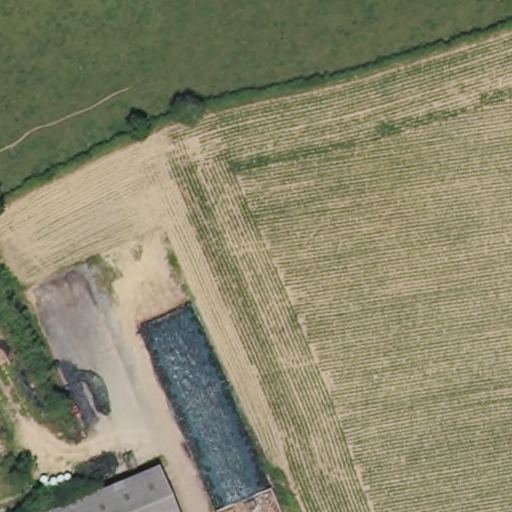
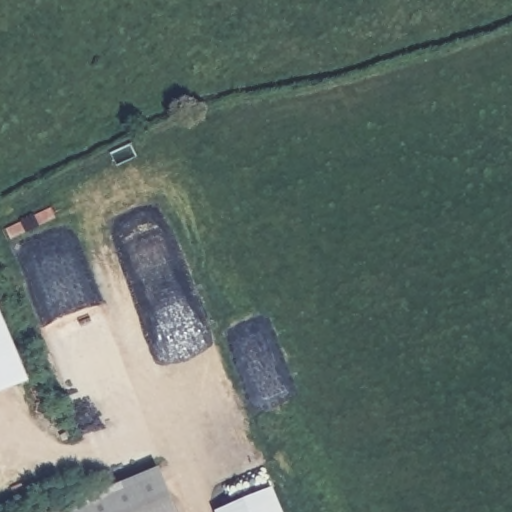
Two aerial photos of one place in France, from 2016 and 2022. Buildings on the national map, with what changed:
new [(0,312),(28,382),(0,393),(0,312)]
unchanged [(180,512),(61,512),(151,461),(180,512)]
new [(272,487),(282,512),(215,512),(215,511),(272,487)]

